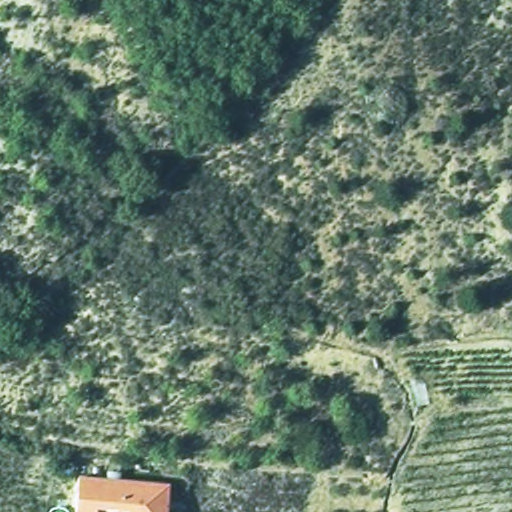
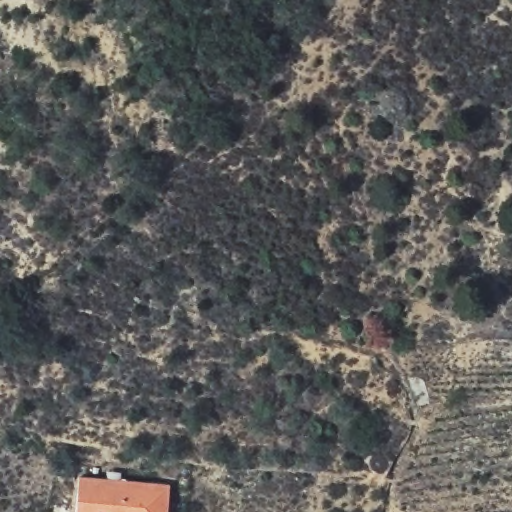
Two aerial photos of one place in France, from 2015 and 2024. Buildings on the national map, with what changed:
unchanged [(75,512),(77,478),(167,484),(165,512),(75,512)]

